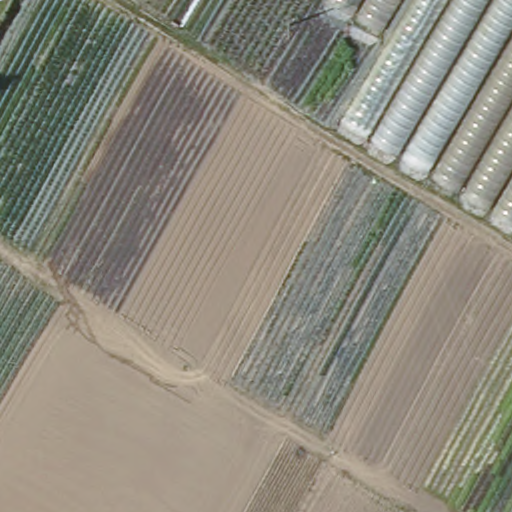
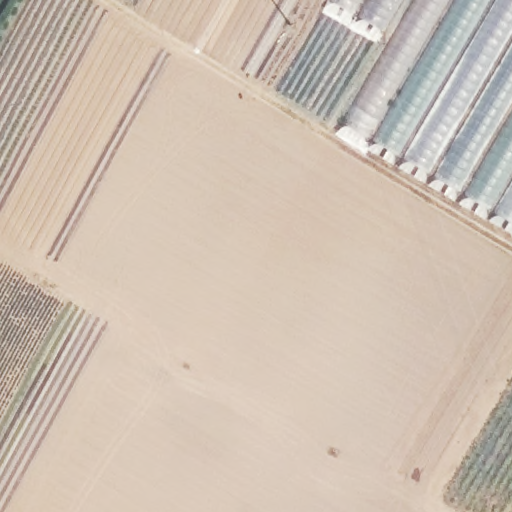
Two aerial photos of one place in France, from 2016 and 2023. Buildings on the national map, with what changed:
unchanged [(375,142),(337,122),(386,31),(331,0),(332,0),(458,0),(375,142)]
unchanged [(375,142),(458,0),(512,0),(512,230),(375,142)]

